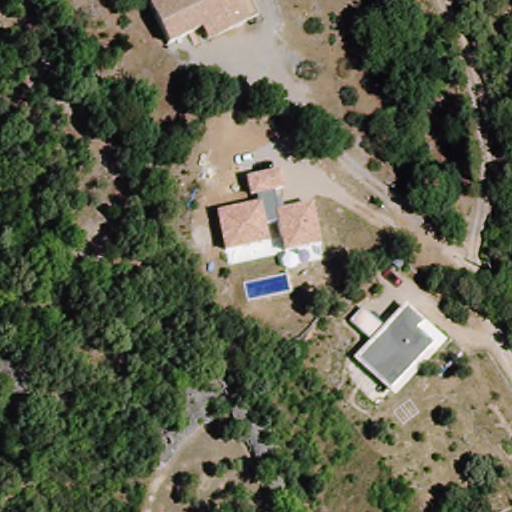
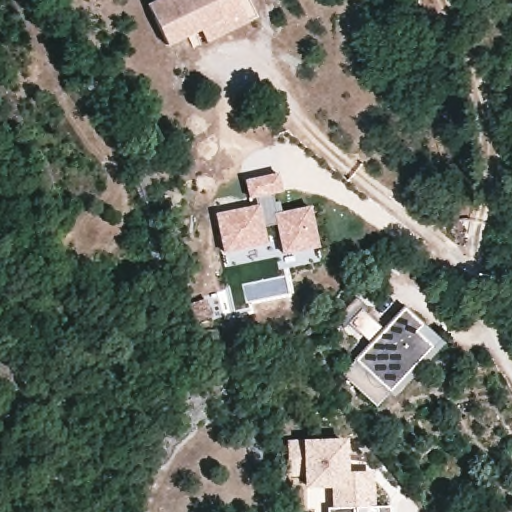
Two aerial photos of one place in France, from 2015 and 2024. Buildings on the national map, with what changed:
unchanged [(153,0),(236,0),(248,25),(204,41),(199,31),(166,43),(150,1),(153,0)]
unchanged [(216,213),(256,204),(255,198),(249,199),(245,179),(279,173),(283,191),(271,194),(274,213),(309,206),(318,246),(283,253),(275,224),(263,227),(266,244),(223,253),(216,213)]
unchanged [(353,360),(369,342),(349,323),(360,309),(383,328),(404,305),(445,343),(393,397),(353,360)]
new [(348,471),(374,471),(375,507),(390,507),(390,512),(327,512),(327,508),(333,508),(333,488),(304,489),(304,476),(287,477),(288,440),(346,438),(348,471)]

